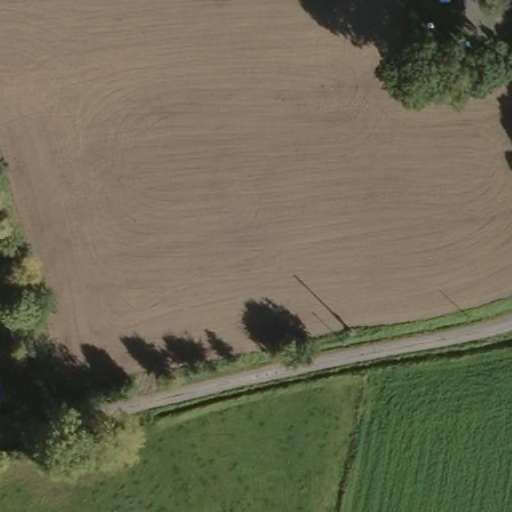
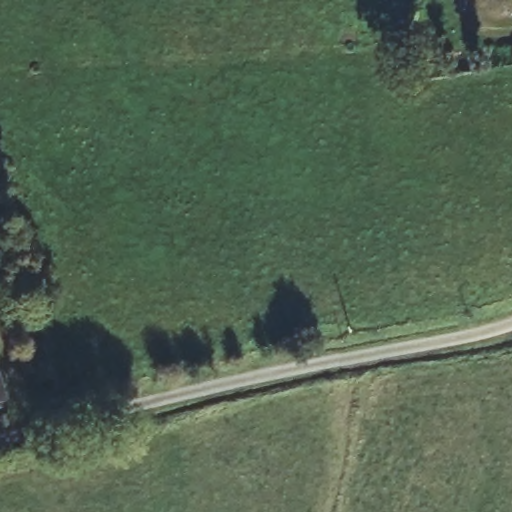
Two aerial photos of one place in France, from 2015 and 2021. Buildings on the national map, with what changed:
unchanged [(6,394),(0,395),(0,371),(6,394)]

